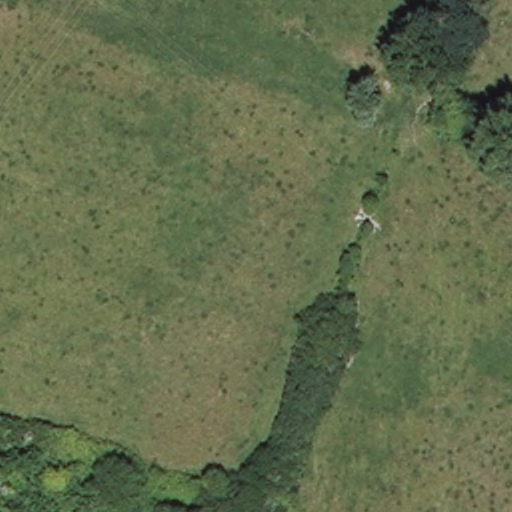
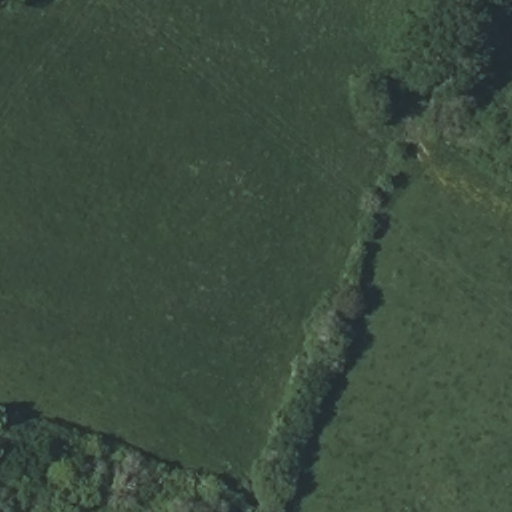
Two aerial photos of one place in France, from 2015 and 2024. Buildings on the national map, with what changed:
[]

